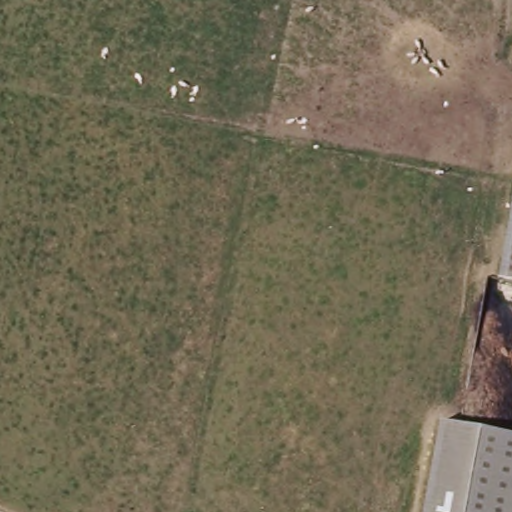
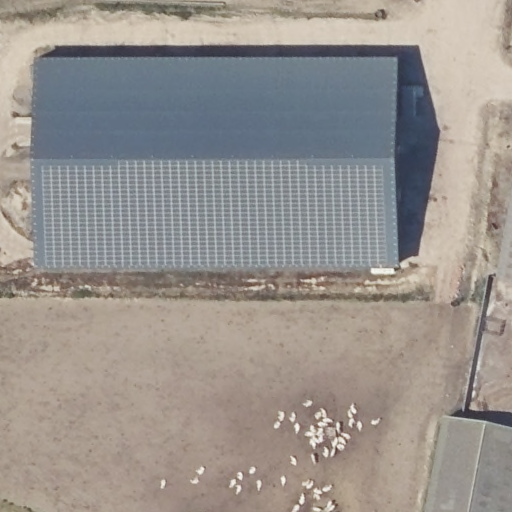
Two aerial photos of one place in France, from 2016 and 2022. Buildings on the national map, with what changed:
new [(401,264),(40,261),(41,53),(399,55),(401,264)]
unchanged [(512,199),(512,283),(497,280),(512,199)]
unchanged [(512,435),(512,512),(424,512),(441,422),(512,435)]

